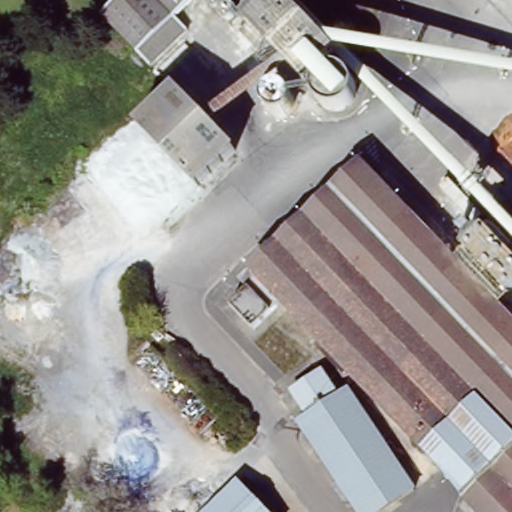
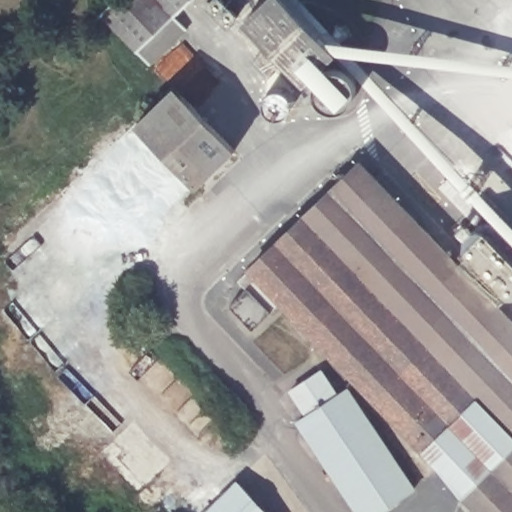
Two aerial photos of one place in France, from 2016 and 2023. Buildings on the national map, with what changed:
unchanged [(174,21),(186,33),(149,69),(101,20),(121,0),(196,0),(174,21)]
unchanged [(349,78),(352,81),(353,82),(354,86),(356,89),(356,95),(356,101),(354,103),(351,108),(348,111),(341,114),(339,114),(338,114),(331,114),(325,112),(323,111),(321,108),(318,103),(316,97),(315,94),(316,90),(317,86),(312,80),(306,87),(298,94),(241,34),(248,27),(246,25),(246,24),(223,0),(281,0),(336,57),(333,61),(349,78)]
unchanged [(141,128),(178,92),(240,155),(203,191),(141,128)]
unchanged [(423,454),(281,307),(253,334),(230,310),(248,292),(241,284),(361,168),(431,241),(441,232),(457,249),(448,258),(512,325),(512,512),(474,512),(445,481),(423,454)]
unchanged [(291,395),(321,375),(337,400),(348,393),(414,493),(386,512),(355,512),(297,427),(307,420),(291,395)]
unchanged [(270,512),(215,512),(243,485),(270,512)]

